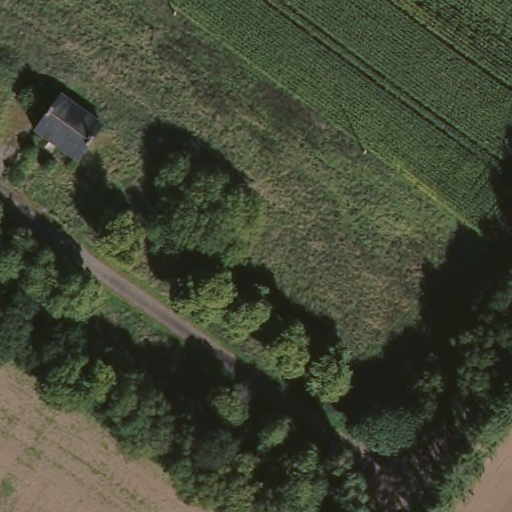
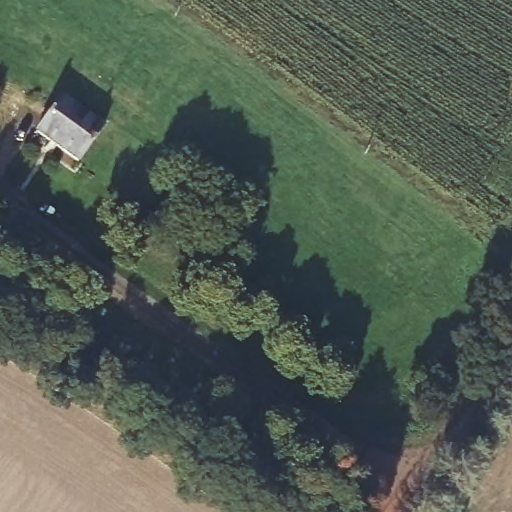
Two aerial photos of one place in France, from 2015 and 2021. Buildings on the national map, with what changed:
unchanged [(30,134),(55,100),(96,128),(72,163),(30,134)]

